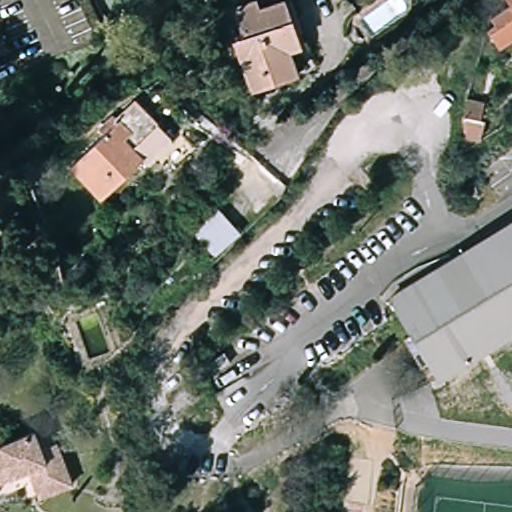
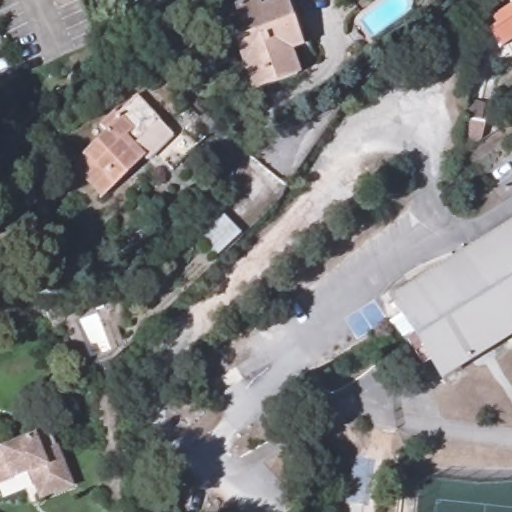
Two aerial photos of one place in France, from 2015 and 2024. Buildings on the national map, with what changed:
unchanged [(246,0),(256,0),(259,8),(281,0),(284,0),(300,45),(289,50),(297,73),(254,89),(234,40),(241,37),(230,6),(233,5),(246,0)]
unchanged [(495,48),(483,30),(491,24),(487,18),(498,11),(507,4),(505,0),(512,0),(512,38),(495,48)]
unchanged [(175,128),(191,144),(167,169),(151,153),(141,162),(136,158),(98,198),(66,168),(133,100),(153,120),(151,123),(166,136),(175,128)]
unchanged [(481,107),(473,139),(459,135),(467,104),(481,107)]
unchanged [(213,255),(189,229),(215,207),(236,232),(213,255)]
unchanged [(512,221),(512,330),(435,378),(409,337),(412,335),(390,299),(512,221)]
unchanged [(38,456),(53,450),(70,490),(35,504),(25,477),(0,486),(0,450),(31,437),(38,456)]

